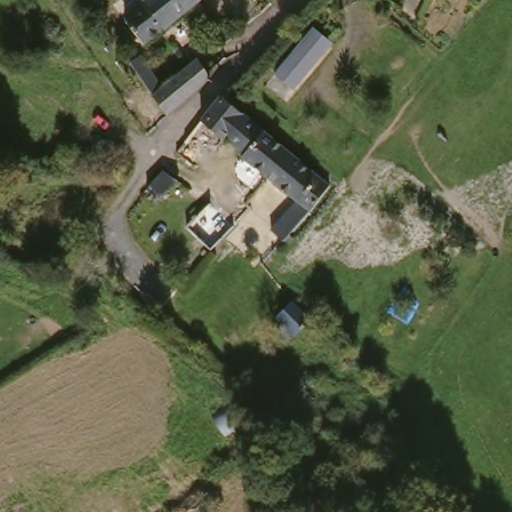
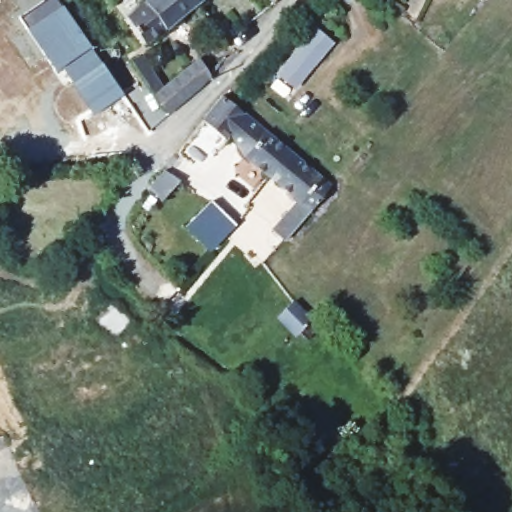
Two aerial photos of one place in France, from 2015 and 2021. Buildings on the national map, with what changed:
new [(67,87),(72,84),(62,69),(54,76),(28,32),(19,20),(45,0),(57,0),(121,95),(90,119),(67,87)]
unchanged [(155,5),(162,0),(207,0),(211,0),(209,2),(155,45),(136,20),(155,5)]
unchanged [(289,0),(280,14),(266,3),(268,0),(289,0)]
unchanged [(330,34),(313,55),(291,83),(278,71),(300,43),(316,22),(330,34)]
unchanged [(234,30),(242,43),(231,52),(222,39),(234,30)]
unchanged [(154,53),(155,55),(176,85),(200,61),(216,75),(174,118),(139,64),(154,53)]
unchanged [(235,96),(235,97),(239,100),(301,154),(278,180),(235,141),(222,156),(201,139),(235,96)]
unchanged [(335,183),(289,240),(278,229),(294,207),(302,201),(278,180),(301,154),(335,183)]
unchanged [(174,180),(185,189),(172,206),(160,199),(174,180)]
unchanged [(221,217),(238,230),(226,244),(217,255),(200,243),(221,217)]
unchanged [(278,315),(285,302),(289,304),(293,293),(312,307),(308,316),(311,318),(302,335),(290,327),(276,319),(278,315)]

